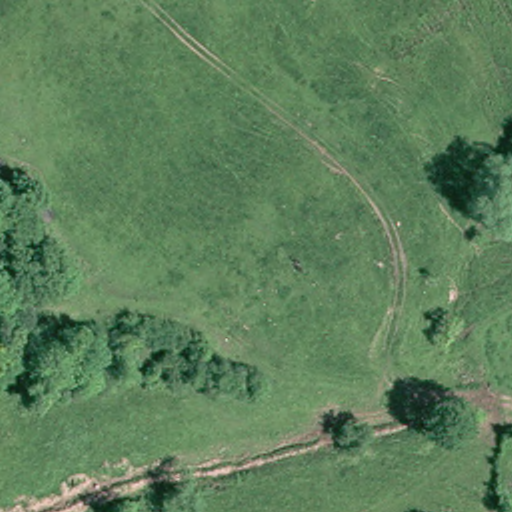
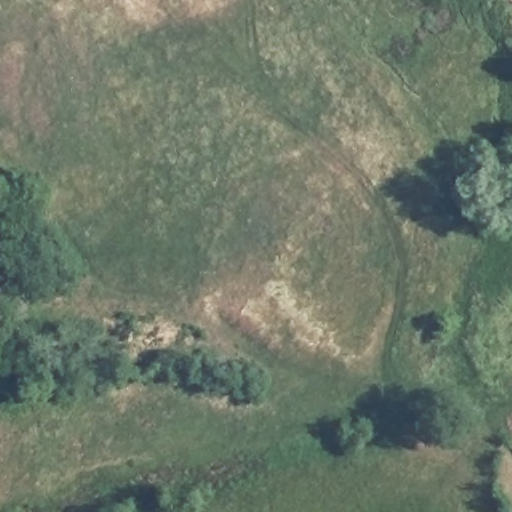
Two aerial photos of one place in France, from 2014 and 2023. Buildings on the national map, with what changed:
[]

